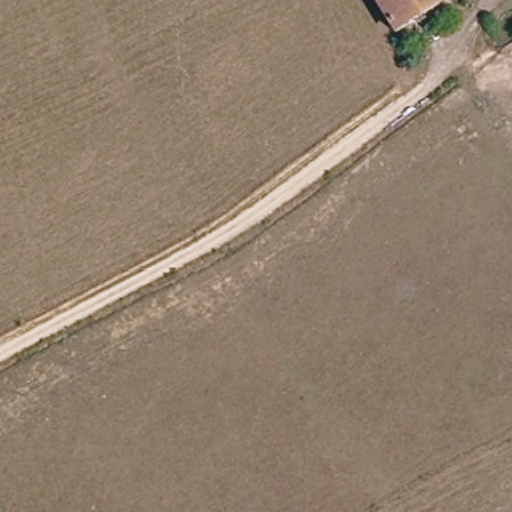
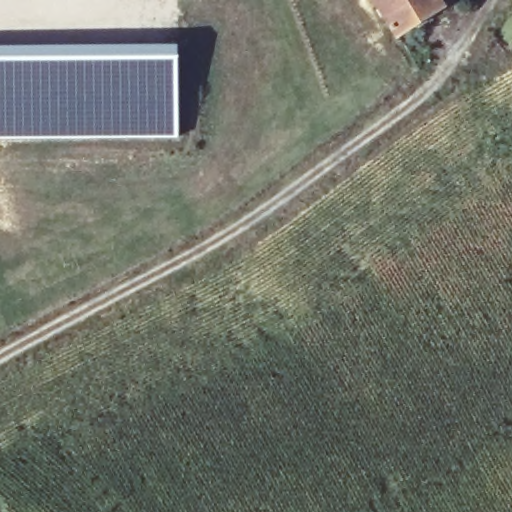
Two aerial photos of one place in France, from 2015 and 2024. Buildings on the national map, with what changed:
unchanged [(393,32),(372,0),(427,0),(432,6),(393,32)]
new [(179,43),(179,137),(0,139),(0,43),(179,43)]

